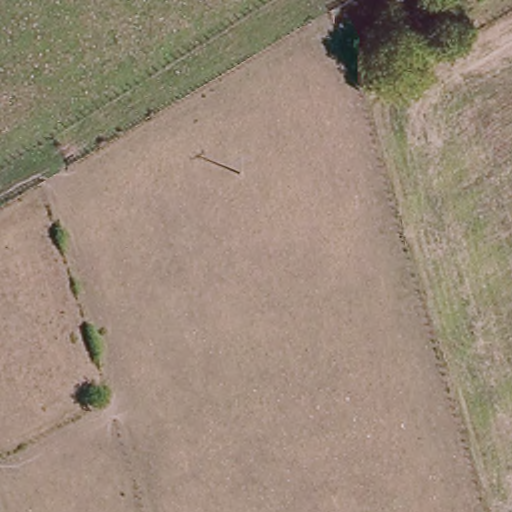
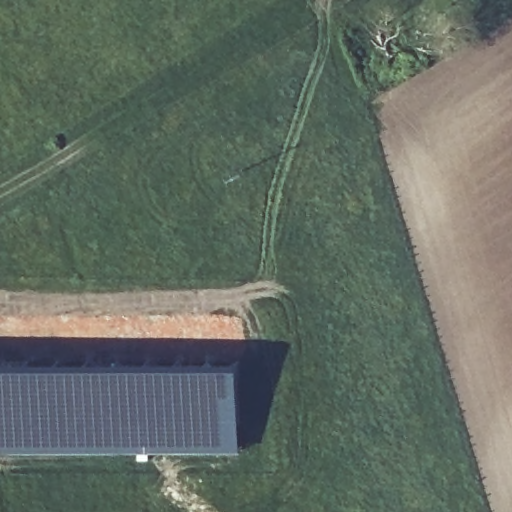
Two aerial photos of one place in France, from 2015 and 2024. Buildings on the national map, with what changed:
new [(241,363),(241,451),(141,452),(30,449),(0,450),(0,362),(146,362),(241,363)]

